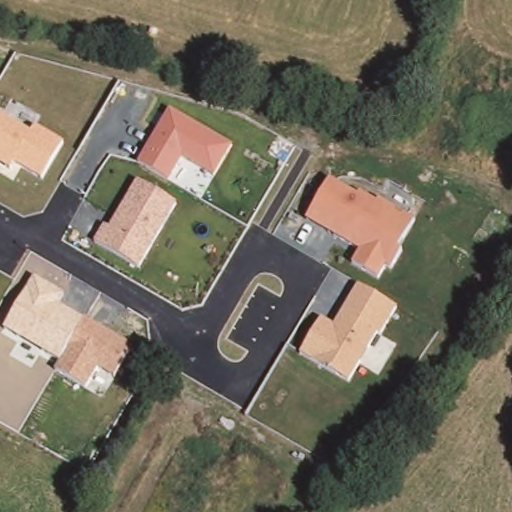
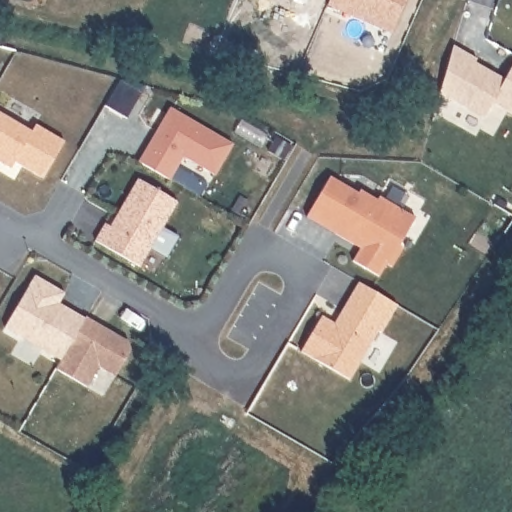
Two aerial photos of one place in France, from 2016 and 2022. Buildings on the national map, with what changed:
new [(391,32),(327,6),(329,0),(405,0),(391,32)]
new [(492,103),(483,117),(439,94),(453,46),(477,60),(475,62),(505,79),(512,65),(512,114),(492,103)]
unchanged [(183,157),(168,180),(137,162),(169,108),(232,145),(213,175),(183,157)]
unchanged [(16,162),(13,168),(0,161),(0,112),(33,130),(37,124),(66,140),(45,179),(16,162)]
unchanged [(400,246),(404,249),(393,268),(386,265),(380,276),(352,261),(359,249),(306,218),(329,175),(359,191),(361,188),(380,199),(381,196),(416,218),(400,246)]
unchanged [(95,241),(103,224),(109,226),(136,180),(177,202),(138,267),(95,241)]
unchanged [(61,360),(4,327),(34,276),(65,295),(57,305),(84,320),(61,360)]
unchanged [(383,335),(379,332),(351,380),(301,352),(321,315),(334,322),(358,281),(399,305),(383,335)]
unchanged [(117,377),(100,367),(88,388),(55,370),(86,315),(130,341),(133,351),(117,377)]

